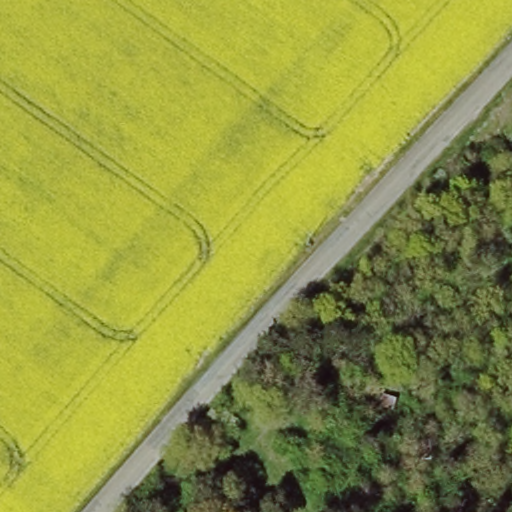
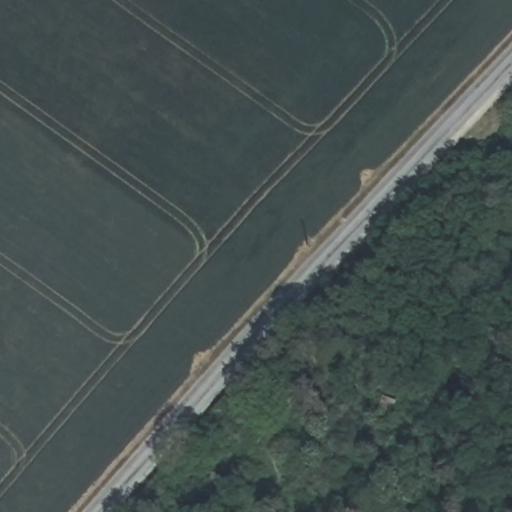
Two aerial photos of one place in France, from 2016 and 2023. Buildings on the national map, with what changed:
[]

